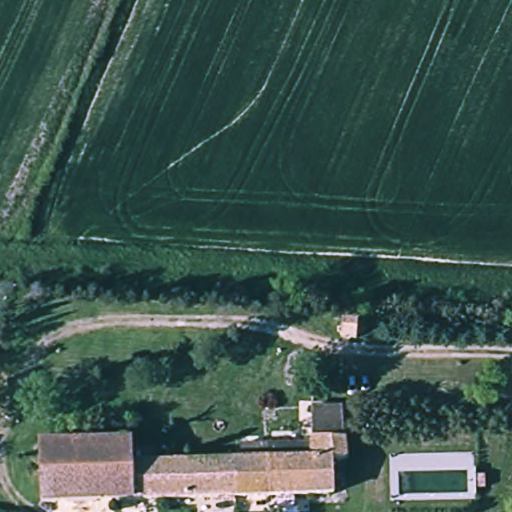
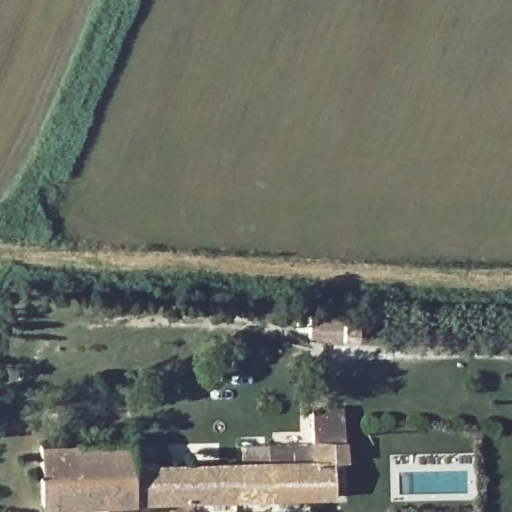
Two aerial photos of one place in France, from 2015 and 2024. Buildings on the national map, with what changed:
unchanged [(41,502),(42,443),(42,439),(130,440),(131,459),(228,458),(228,501),(41,502)]
unchanged [(316,457),(316,443),(341,442),(342,476),(329,476),(329,501),(266,501),(265,458),(316,457)]
unchanged [(228,501),(228,458),(265,458),(266,501),(228,501)]

